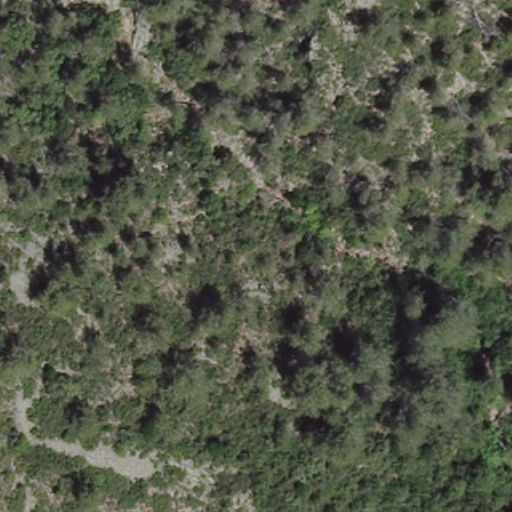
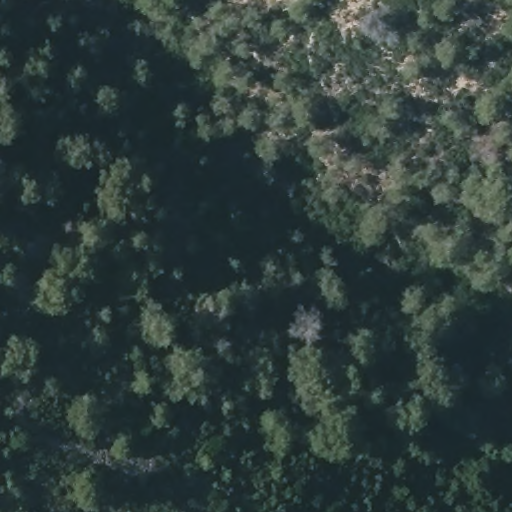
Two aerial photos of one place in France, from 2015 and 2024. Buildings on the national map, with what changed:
[]

